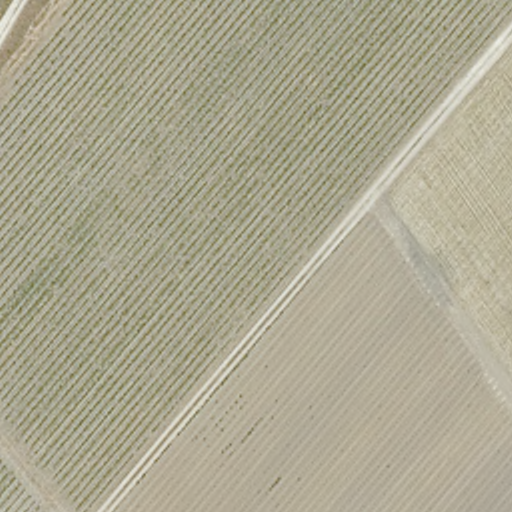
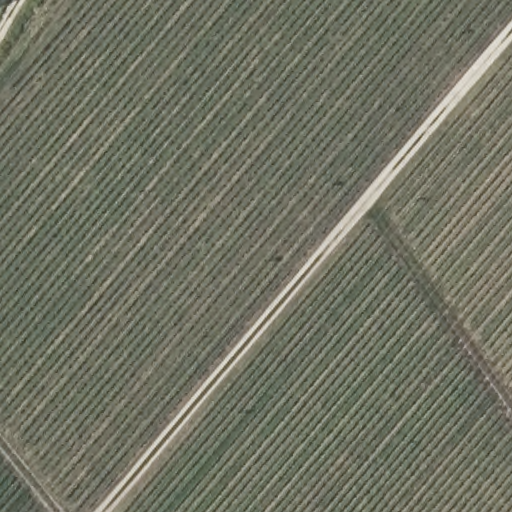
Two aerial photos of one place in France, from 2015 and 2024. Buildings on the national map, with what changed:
[]

